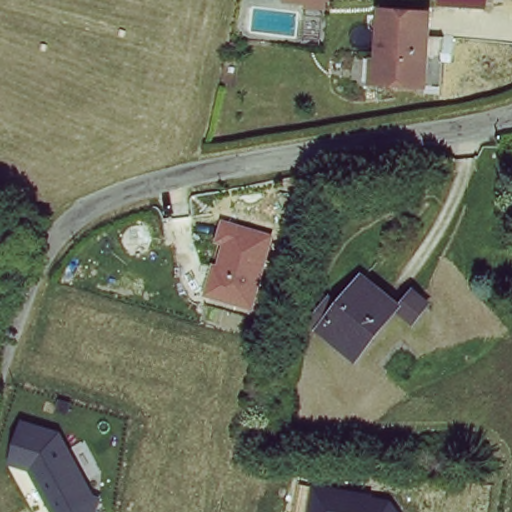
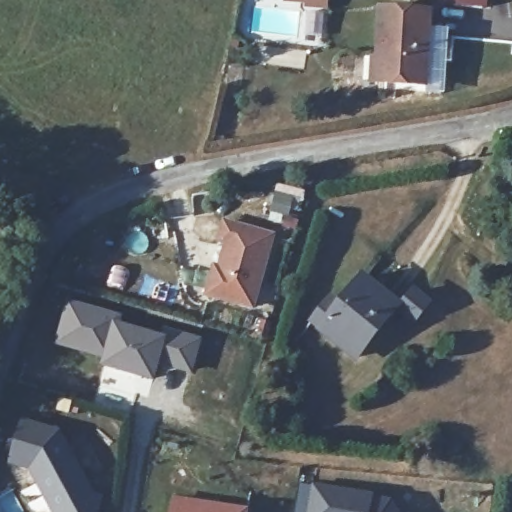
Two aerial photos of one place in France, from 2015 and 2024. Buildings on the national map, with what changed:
unchanged [(298,42),(302,6),(283,4),(283,0),(328,0),(321,45),(298,42)]
unchanged [(439,17),(431,80),(427,80),(424,97),(384,91),(389,56),(385,55),(392,11),(439,17)]
unchanged [(202,298),(223,217),(276,233),(253,312),(202,298)]
unchanged [(398,309),(352,357),(322,327),(313,319),(332,298),(341,306),(365,281),(398,309)]
new [(123,317),(121,324),(163,336),(164,329),(204,340),(193,374),(159,366),(155,382),(102,368),(103,360),(54,345),(68,299),(123,317)]
unchanged [(418,299),(429,309),(415,322),(403,313),(418,299)]
unchanged [(100,512),(47,512),(28,472),(9,465),(22,420),(63,432),(102,503),(100,512)]
unchanged [(374,494),(390,500),(399,512),(308,512),(314,484),(374,494)]
new [(250,507),(249,512),(170,512),(173,495),(250,507)]

